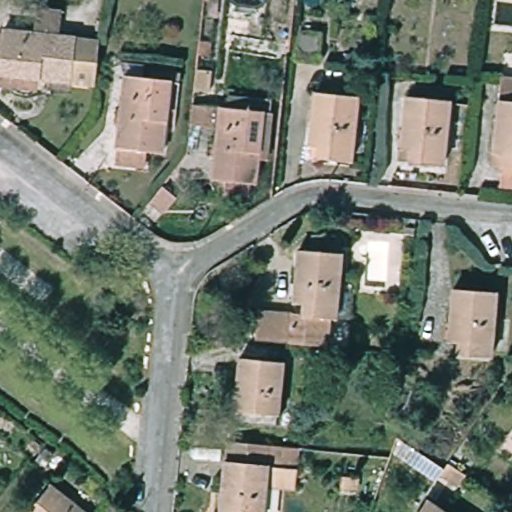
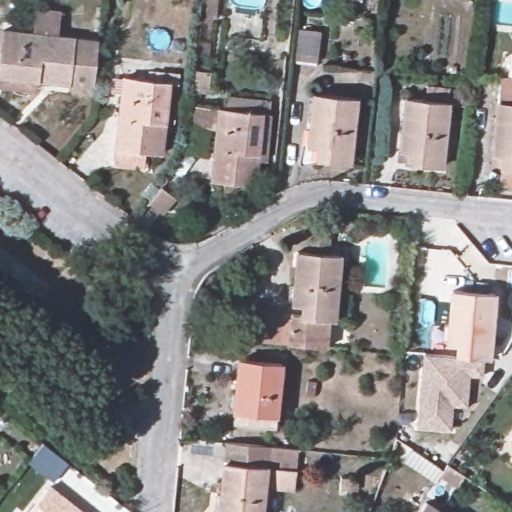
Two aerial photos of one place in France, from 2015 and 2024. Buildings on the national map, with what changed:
unchanged [(1,86),(2,74),(6,30),(42,34),(45,10),(68,13),(65,36),(103,40),(103,42),(98,84),(43,79),(43,91),(1,86)]
unchanged [(495,194),(497,168),(496,168),(488,167),(489,154),(499,51),(512,52),(512,196),(495,194)]
unchanged [(114,162),(115,146),(123,73),(153,77),(154,68),(180,70),(180,79),(168,78),(161,150),(145,148),(143,165),(114,162)]
unchanged [(193,92),(195,71),(210,72),(208,93),(193,92)]
unchanged [(396,150),(401,98),(421,100),(422,86),(445,88),(444,102),(438,166),(405,163),(405,162),(395,161),(396,150)]
unchanged [(223,174),(211,173),(217,121),(190,118),(191,98),(219,101),(226,101),(226,91),(254,94),(271,93),(266,146),(257,145),(254,177),(249,176),(248,189),(223,187),(223,174)]
unchanged [(354,131),(343,130),(341,165),(306,161),(308,148),(299,147),(304,94),(355,98),(354,131)]
unchanged [(160,189),(174,200),(161,216),(147,205),(160,189)]
unchanged [(415,240),(404,239),(405,228),(416,229),(415,240)]
unchanged [(334,319),(328,319),(302,316),(303,305),(293,304),(298,252),(312,253),(313,237),(330,238),(329,254),(341,256),(334,319)]
unchanged [(490,358),(458,356),(458,343),(449,343),(452,290),(495,294),(490,358)]
unchanged [(326,346),(253,340),(256,311),(302,316),(328,319),(326,346)]
new [(458,356),(485,357),(484,378),(471,378),(468,408),(454,407),(452,431),(417,428),(424,354),(458,356)]
unchanged [(233,423),(238,360),(281,363),(275,427),(233,423)]
unchanged [(508,436),(512,429),(512,439),(508,436)]
unchanged [(266,467),(295,469),(294,489),(265,486),(261,512),(220,512),(226,442),(269,446),(266,467)]
unchanged [(468,474),(461,485),(442,473),(445,469),(450,463),(468,474)]
unchanged [(341,490),(341,478),(353,479),(353,490),(341,490)]
unchanged [(80,512),(31,512),(51,488),(80,512)]
unchanged [(443,512),(410,512),(420,497),(443,512)]

